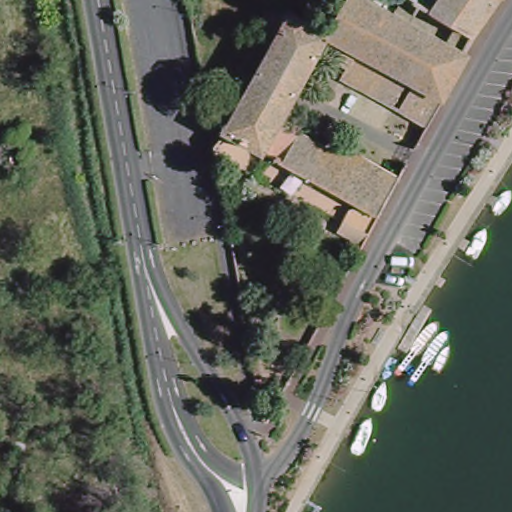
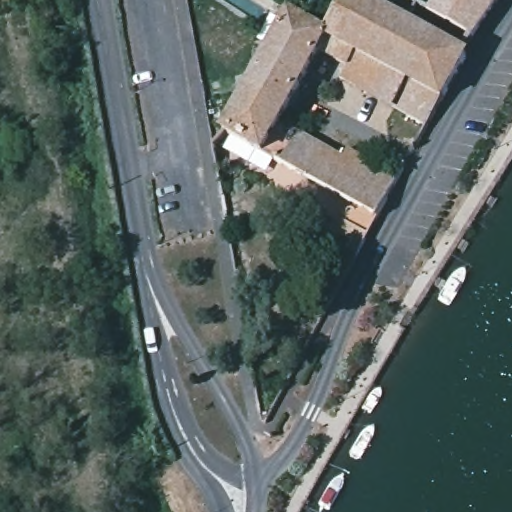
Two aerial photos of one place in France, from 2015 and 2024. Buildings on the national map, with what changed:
unchanged [(468,50),(471,51),(446,96),(418,81),(410,77),(331,32),(347,0),(375,0),(468,50)]
unchanged [(431,10),(414,0),(438,0),(431,10)]
unchanged [(438,0),(502,0),(477,37),(431,10),(438,0)]
unchanged [(226,132),(293,12),(293,11),(330,31),(331,32),(410,77),(394,104),(343,77),(350,63),(322,48),(281,120),(343,154),(348,147),(403,177),(381,217),(368,240),(340,225),(352,202),(226,132)]
unchanged [(431,125),(403,109),(418,81),(446,96),(431,125)]
unchanged [(24,160),(11,160),(11,142),(24,142),(24,160)]

